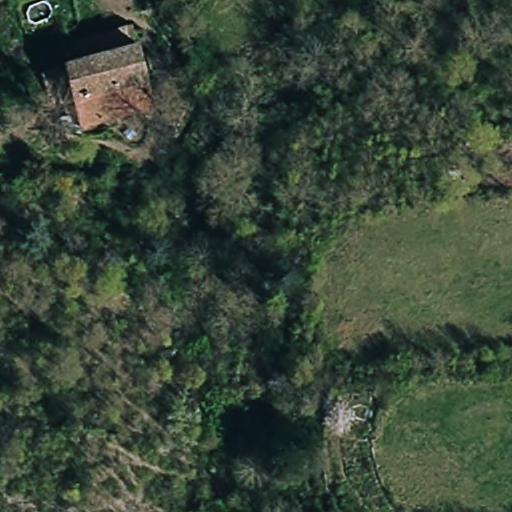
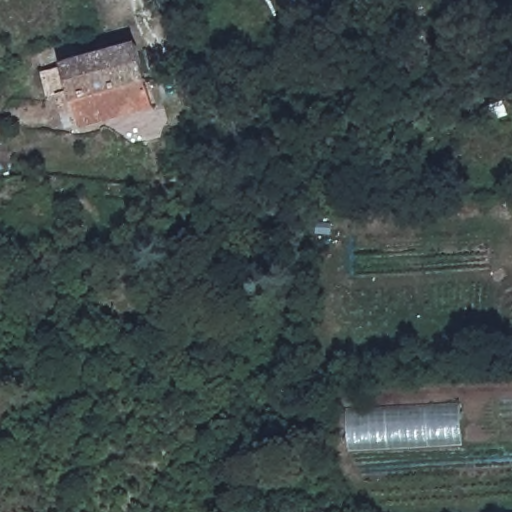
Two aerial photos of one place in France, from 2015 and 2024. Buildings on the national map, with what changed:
unchanged [(139,42),(153,109),(83,124),(65,61),(139,42)]
unchanged [(2,133),(0,133),(0,130),(2,133)]
new [(349,452),(347,409),(461,403),(463,446),(349,452)]

